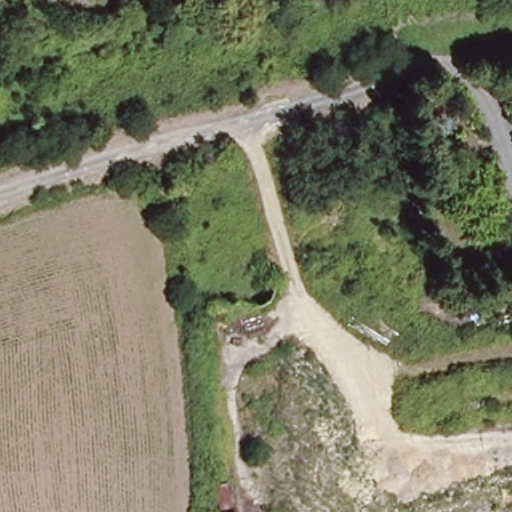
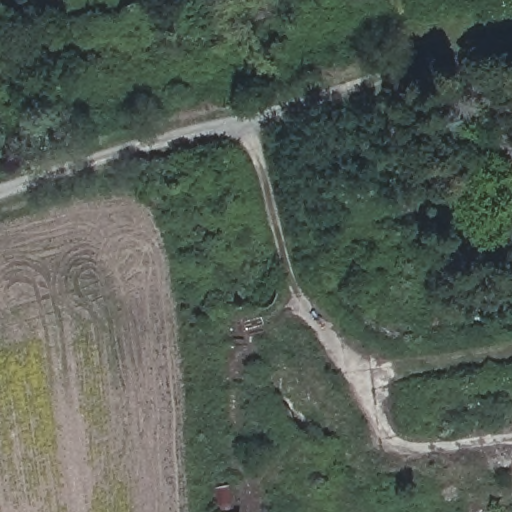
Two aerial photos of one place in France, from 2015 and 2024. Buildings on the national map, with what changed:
unchanged [(178,11),(172,0),(204,0),(178,11)]

